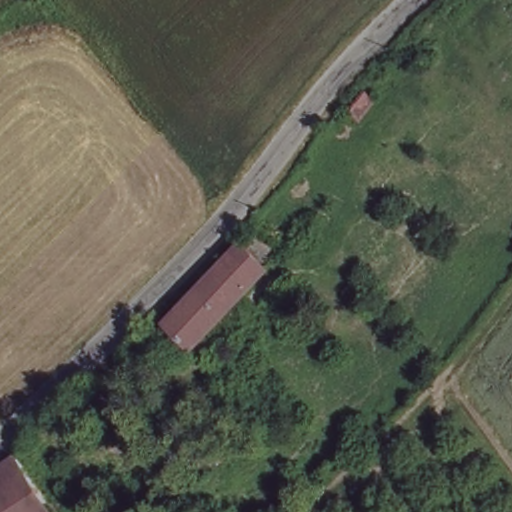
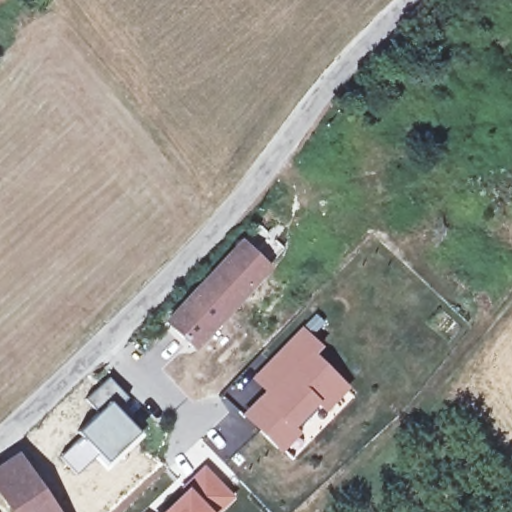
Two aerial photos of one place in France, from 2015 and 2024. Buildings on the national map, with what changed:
unchanged [(259,246),(255,252),(265,261),(252,275),(180,350),(156,327),(245,233),(259,246)]
unchanged [(251,319),(235,337),(227,329),(243,311),(251,319)]
new [(325,413),(318,406),(297,427),(301,431),(282,452),(241,414),(265,390),(252,377),(302,327),(322,347),(316,354),(349,387),(325,413)]
unchanged [(11,512),(0,496),(0,473),(19,459),(53,512),(11,512)]
new [(161,512),(185,490),(182,487),(204,465),(235,496),(219,512),(161,512)]

